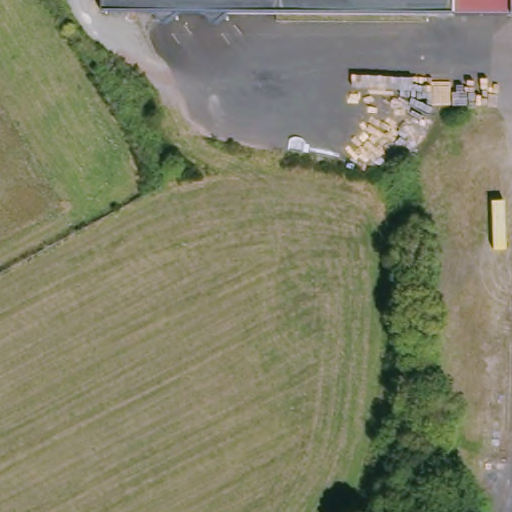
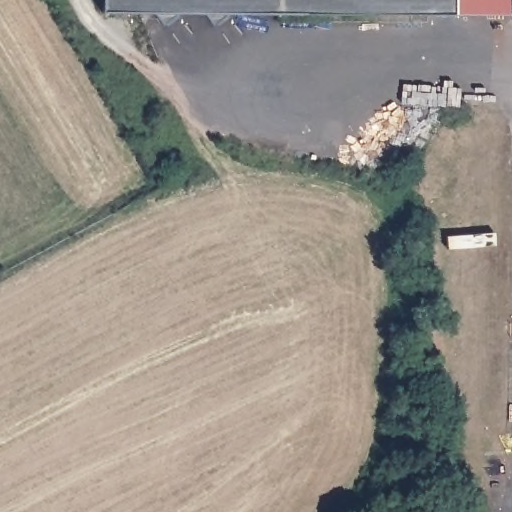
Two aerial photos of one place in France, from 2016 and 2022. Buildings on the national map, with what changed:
unchanged [(457,16),(107,14),(107,0),(512,0),(512,17),(457,16)]

